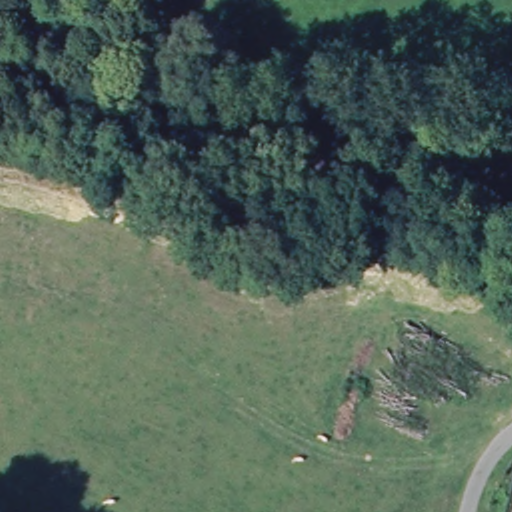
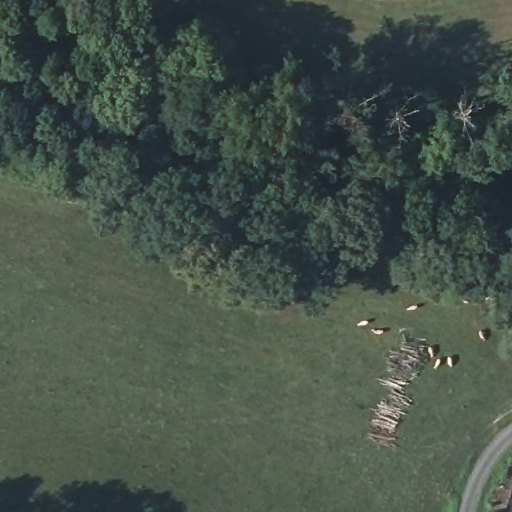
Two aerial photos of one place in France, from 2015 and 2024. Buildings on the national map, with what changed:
[]

